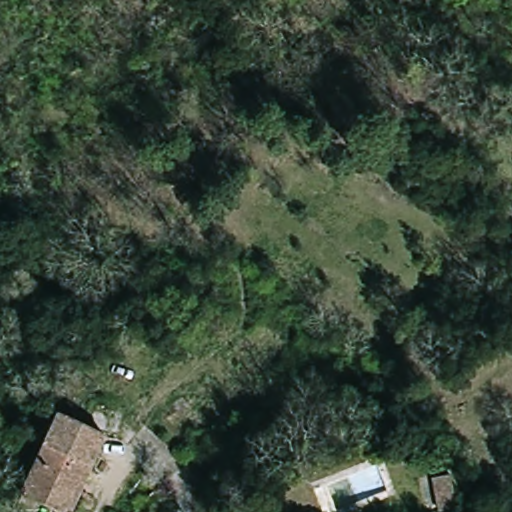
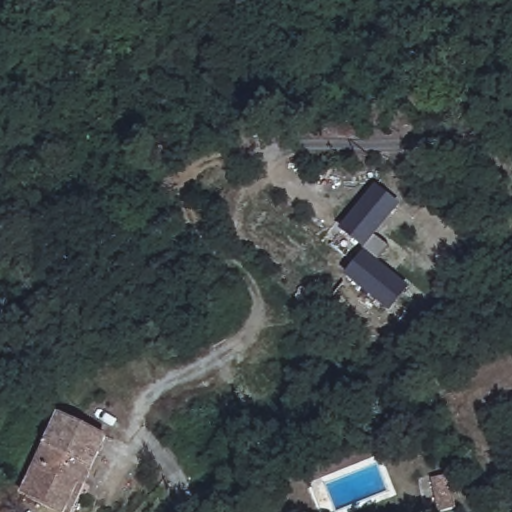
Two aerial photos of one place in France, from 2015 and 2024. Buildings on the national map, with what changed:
new [(409,287),(389,312),(344,275),(364,250),(363,249),(339,229),(375,183),(401,204),(375,235),(391,248),(379,262),(409,287)]
unchanged [(81,512),(66,512),(65,512),(24,498),(55,411),(104,428),(86,478),(93,480),(81,512)]
unchanged [(444,470),(458,500),(445,507),(429,476),(444,470)]

